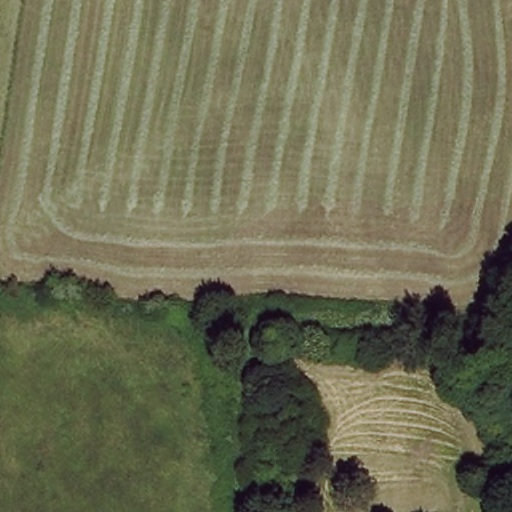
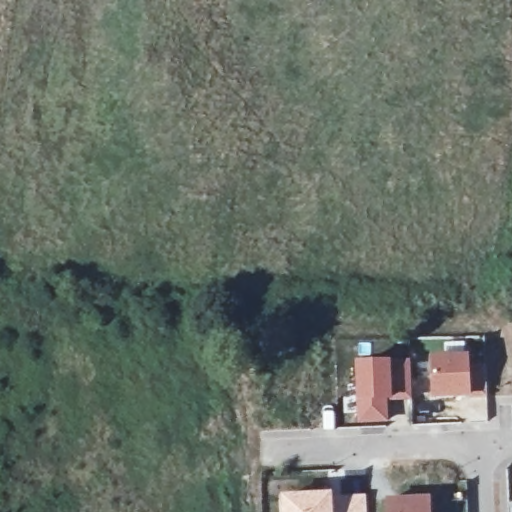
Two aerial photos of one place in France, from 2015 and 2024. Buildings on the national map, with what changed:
new [(470,357),(471,368),(486,366),(489,397),(472,397),(433,400),(430,359),(470,357)]
new [(411,363),(414,400),(387,401),(387,422),(362,422),(360,367),(411,363)]
new [(335,498),(369,496),(369,512),(282,512),(282,497),(335,495),(335,498)]
new [(431,512),(387,512),(386,501),(430,498),(431,512)]

